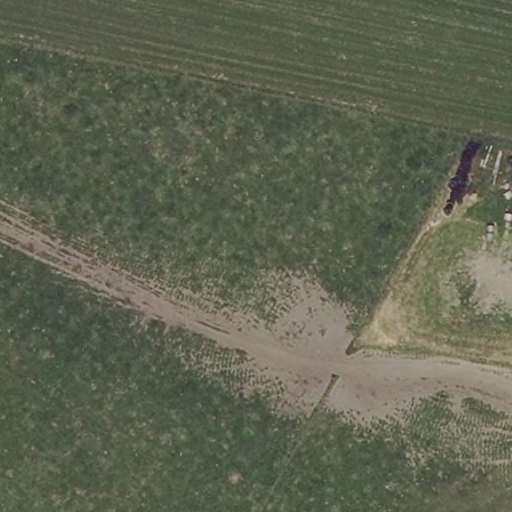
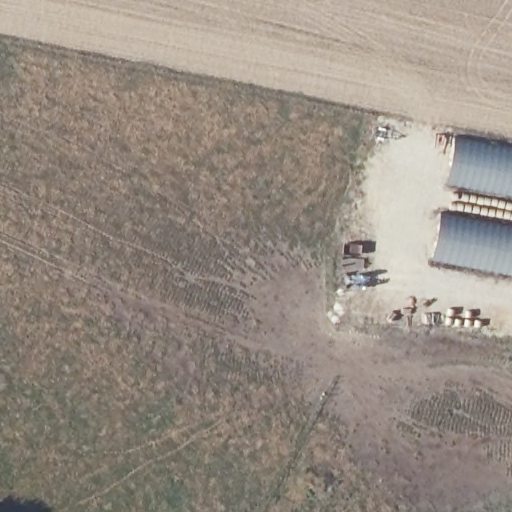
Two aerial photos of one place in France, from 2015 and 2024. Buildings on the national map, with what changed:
new [(454,136),(512,146),(512,198),(446,185),(454,136)]
new [(440,211),(512,224),(512,276),(432,261),(440,211)]

